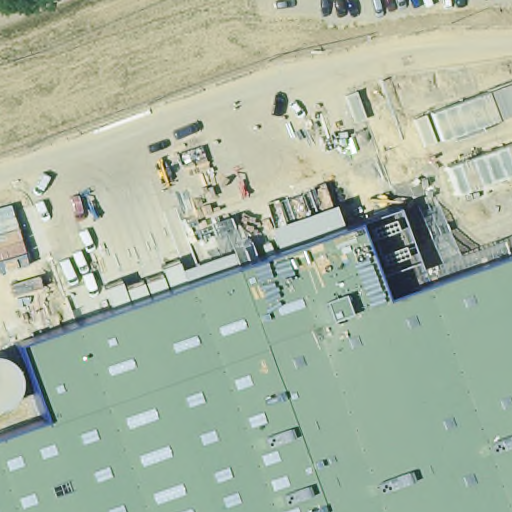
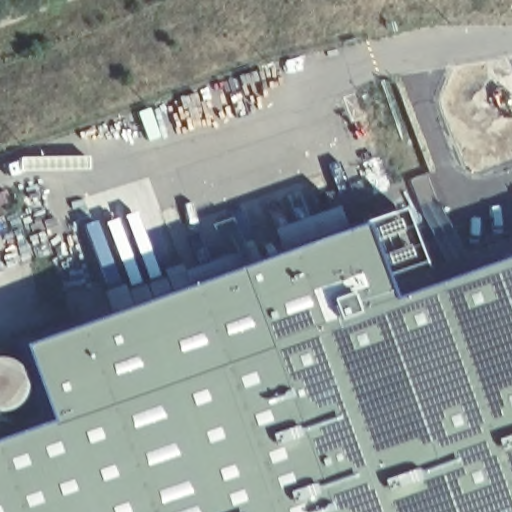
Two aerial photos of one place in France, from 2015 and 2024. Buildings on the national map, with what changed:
unchanged [(424,282),(512,250),(512,512),(0,512),(0,436),(45,421),(17,344),(353,223),(397,209),(424,282)]

